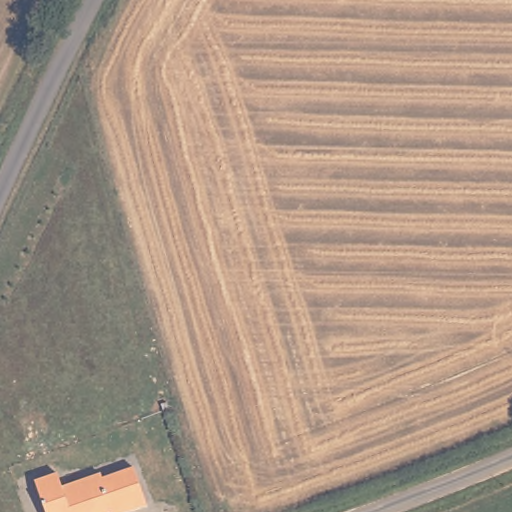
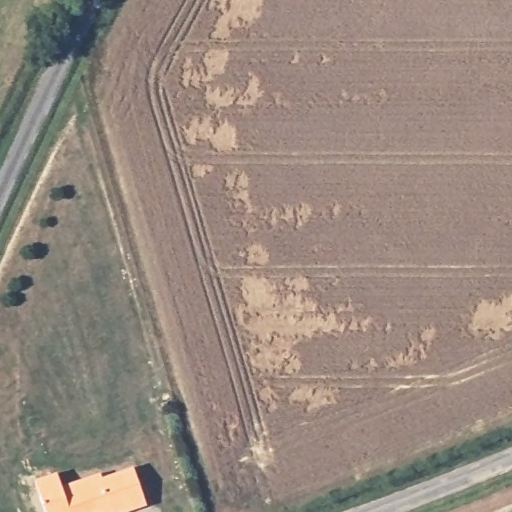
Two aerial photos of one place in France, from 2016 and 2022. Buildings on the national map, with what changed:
unchanged [(55,472),(60,486),(90,475),(99,472),(100,477),(132,466),(145,504),(124,512),(111,512),(110,511),(108,512),(44,512),(34,480),(55,472)]

